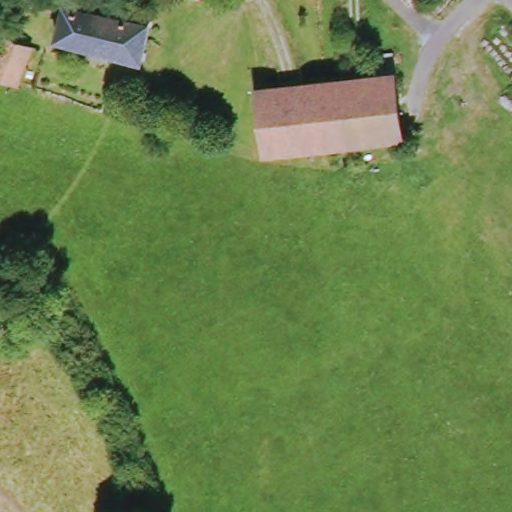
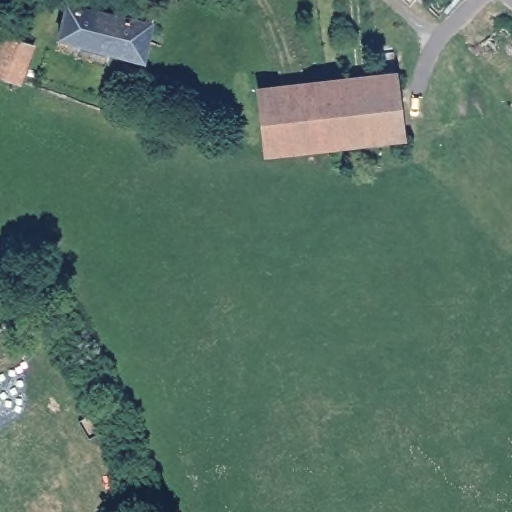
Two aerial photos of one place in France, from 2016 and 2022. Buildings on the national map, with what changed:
unchanged [(46,47),(53,6),(138,21),(133,61),(46,47)]
unchanged [(19,86),(0,80),(0,37),(29,44),(19,86)]
unchanged [(324,77),(397,64),(413,128),(339,143),(324,77)]
unchanged [(264,159),(260,136),(252,90),(324,77),(339,143),(264,159)]

